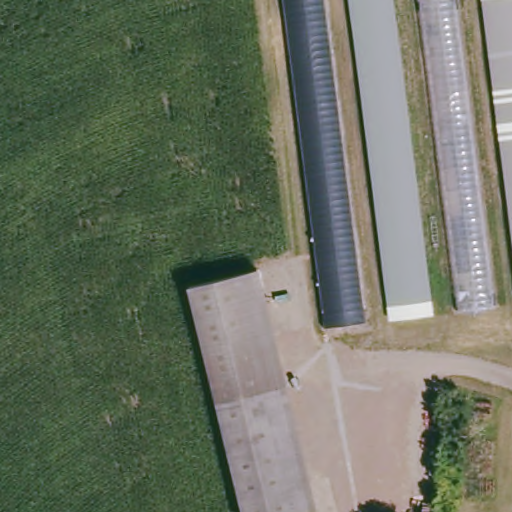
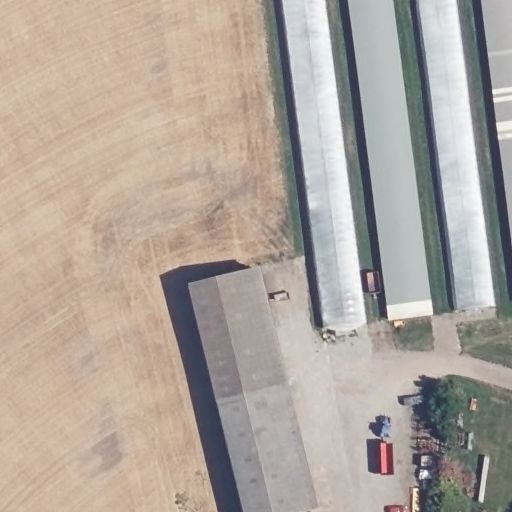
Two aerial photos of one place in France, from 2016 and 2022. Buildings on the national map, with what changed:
unchanged [(365,320),(323,325),(283,0),(325,0),(365,320)]
unchanged [(434,322),(395,327),(353,0),(393,0),(434,322)]
unchanged [(452,0),(462,0),(481,154),(500,309),(457,314),(419,3),(452,0)]
unchanged [(512,207),(510,190),(490,36),(486,0),(512,0),(512,207)]
unchanged [(280,372),(314,507),(295,512),(243,512),(207,370),(186,287),(253,270),(280,372)]

